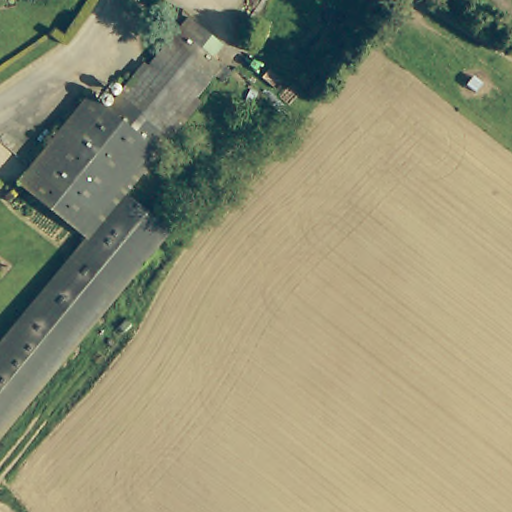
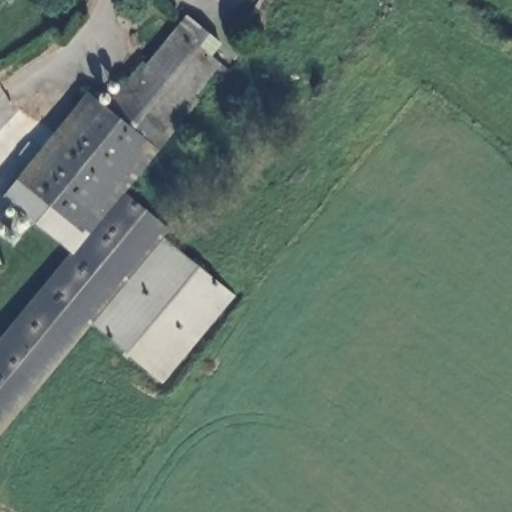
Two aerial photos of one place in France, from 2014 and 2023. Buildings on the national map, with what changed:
unchanged [(12,182),(85,95),(104,111),(140,68),(146,73),(181,31),(220,63),(193,94),(198,98),(120,192),(168,229),(0,430),(0,336),(80,239),(12,182)]
new [(235,295),(162,383),(90,322),(162,236),(235,295)]

